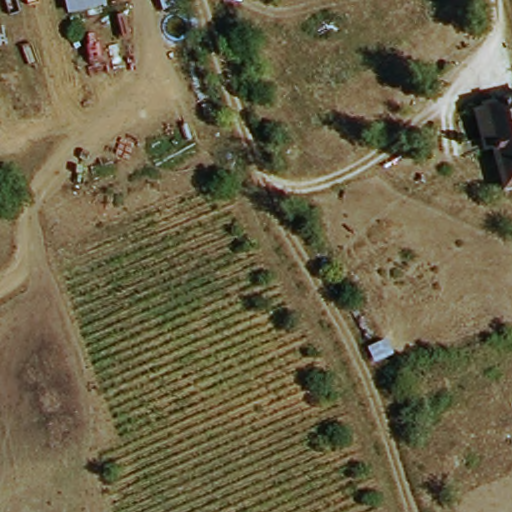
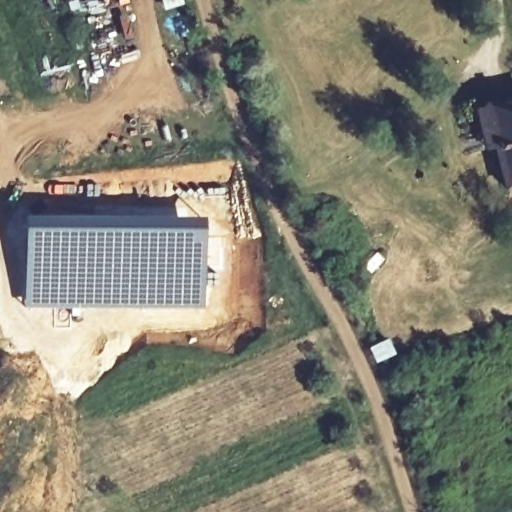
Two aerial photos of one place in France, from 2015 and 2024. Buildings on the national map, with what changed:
unchanged [(70,16),(66,0),(103,0),(105,7),(70,16)]
unchanged [(512,92),(512,186),(505,187),(495,146),(481,150),(472,110),(487,104),(487,99),(512,92)]
new [(58,216),(59,225),(82,222),(82,216),(116,216),(180,215),(208,215),(208,235),(226,235),(221,290),(215,289),(212,301),(210,323),(194,323),(194,316),(175,315),(123,311),(63,310),(23,310),(22,285),(23,216),(58,216)]

